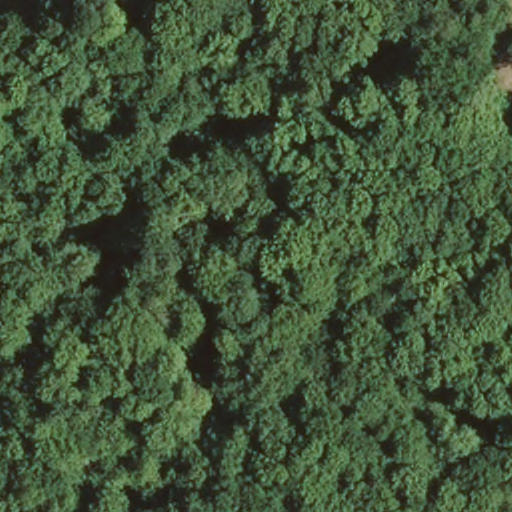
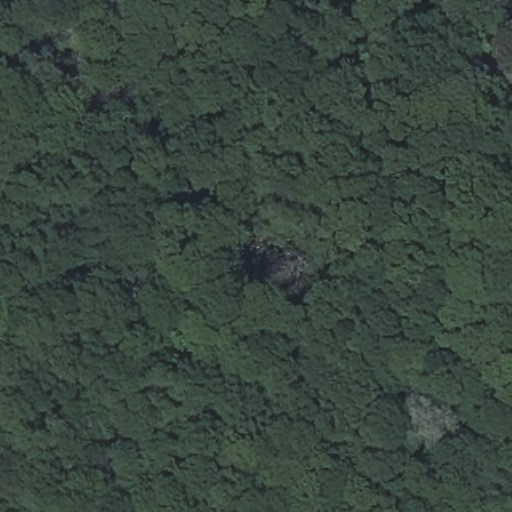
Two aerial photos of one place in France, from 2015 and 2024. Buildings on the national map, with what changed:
[]

